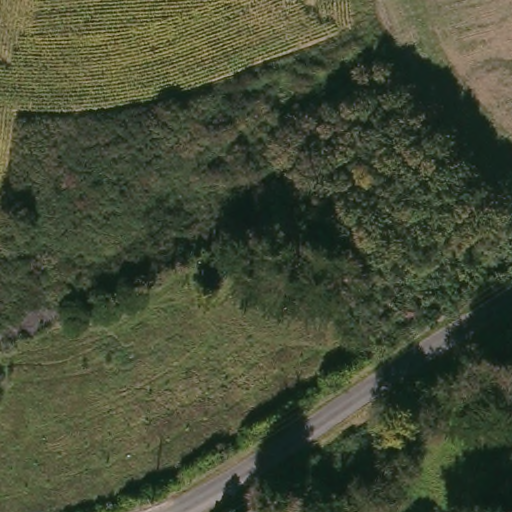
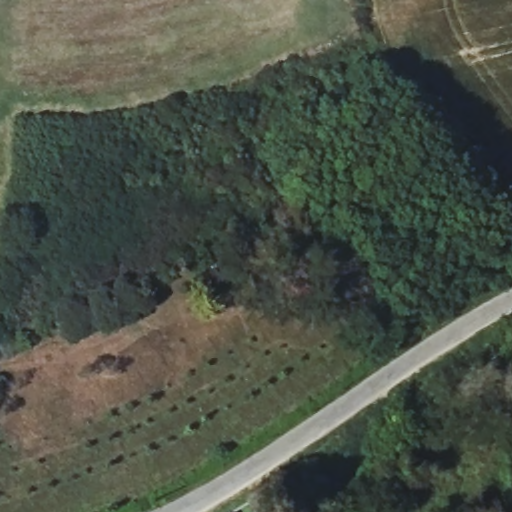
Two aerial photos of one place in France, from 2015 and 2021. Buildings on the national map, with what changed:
unchanged [(225,512),(229,510),(231,512),(225,512)]

